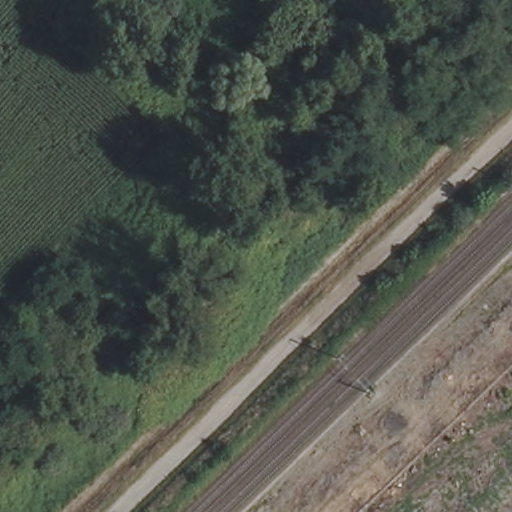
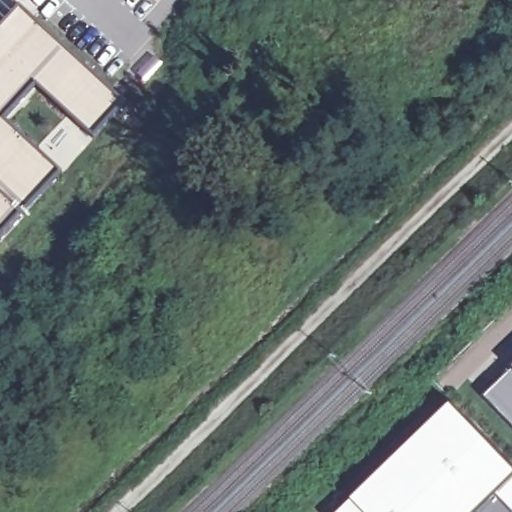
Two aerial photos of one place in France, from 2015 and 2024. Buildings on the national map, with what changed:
new [(20,6),(127,103),(94,139),(36,87),(6,120),(45,156),(63,172),(53,183),(0,241),(0,25),(2,26),(20,6)]
new [(512,370),(512,424),(486,396),(512,370)]
new [(512,461),(512,480),(498,495),(480,512),(366,512),(353,498),(452,401),(512,461)]
new [(498,495),(512,480),(512,510),(498,495)]
new [(512,510),(512,512),(480,512),(498,495),(512,510)]
new [(366,512),(339,512),(353,498),(366,512)]

